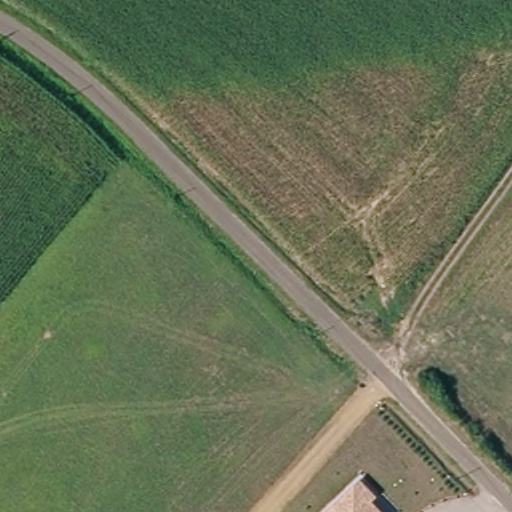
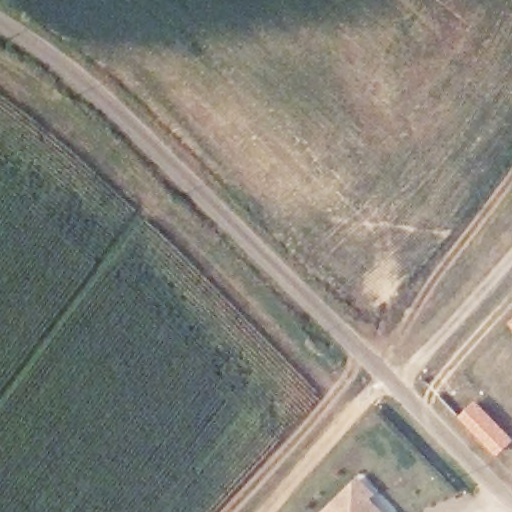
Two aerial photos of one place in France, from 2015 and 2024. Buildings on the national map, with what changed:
new [(512,320),(512,328),(508,324),(512,320)]
new [(476,401),(512,438),(512,443),(497,457),(458,417),(476,401)]
unchanged [(357,479),(371,494),(367,498),(376,507),(380,512),(323,512),(357,479)]

